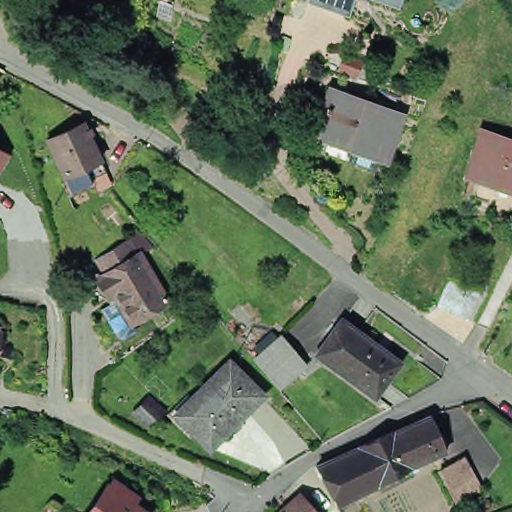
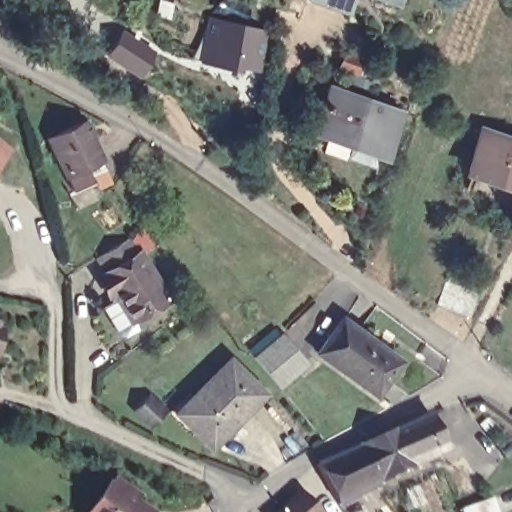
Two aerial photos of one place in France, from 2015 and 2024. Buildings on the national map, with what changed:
unchanged [(347,0),(346,4),(336,0),(347,0)]
new [(265,32),(258,72),(196,61),(207,17),(265,32)]
new [(152,50),(142,62),(150,68),(140,78),(104,51),(122,30),(152,50)]
unchanged [(403,118),(390,156),(324,132),(337,95),(403,118)]
unchanged [(64,183),(40,134),(54,127),(75,116),(77,117),(99,165),(105,176),(97,180),(91,184),(95,190),(72,201),(64,183)]
unchanged [(464,165),(477,126),(507,137),(497,174),(497,177),(464,165)]
unchanged [(507,137),(512,139),(512,182),(497,177),(497,174),(507,137)]
unchanged [(7,151),(0,162),(0,147),(7,151)]
unchanged [(362,231),(346,225),(342,217),(355,182),(375,190),(362,231)]
unchanged [(130,335),(123,332),(108,307),(122,299),(120,296),(107,274),(111,272),(102,256),(132,238),(140,254),(144,252),(172,300),(135,322),(140,328),(130,335)]
unchanged [(469,315),(443,306),(437,303),(449,272),(457,276),(480,285),(469,315)]
unchanged [(377,399),(320,356),(329,346),(346,323),(365,337),(404,365),(382,393),(377,399)]
unchanged [(2,329),(0,337),(0,329),(2,329)]
unchanged [(283,387),(258,357),(285,335),(310,365),(283,387)]
unchanged [(205,451),(172,418),(177,412),(223,365),(257,397),(205,451)]
unchanged [(157,410),(148,426),(128,415),(136,399),(157,410)]
unchanged [(429,412),(446,450),(429,460),(412,467),(412,466),(393,428),(429,412)]
unchanged [(393,428),(412,466),(378,482),(359,445),(393,428)]
unchanged [(336,503),(334,498),(317,464),(359,445),(378,482),(336,503)]
unchanged [(480,486),(455,499),(448,486),(440,470),(462,458),(470,474),(473,472),(480,486)]
unchanged [(103,486),(109,477),(135,495),(130,503),(142,512),(85,512),(103,486)]
unchanged [(310,488),(325,510),(322,512),(279,512),(310,488)]

